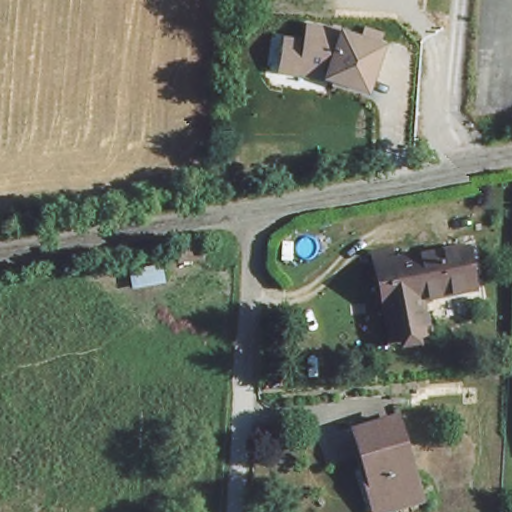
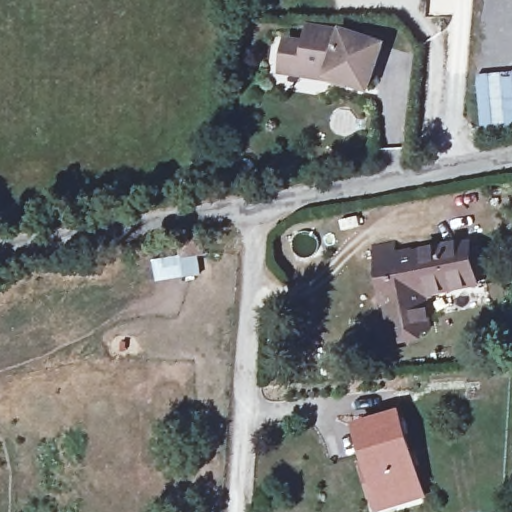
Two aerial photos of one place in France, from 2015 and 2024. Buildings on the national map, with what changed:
unchanged [(372,96),(325,81),(279,75),(286,37),(306,40),(308,26),(343,32),(344,29),(390,44),(372,96)]
new [(512,72),(512,125),(481,130),(477,74),(512,72)]
unchanged [(468,244),(474,287),(468,287),(426,293),(432,331),(393,336),(386,286),(415,282),(410,252),(461,245),(468,244)]
unchanged [(380,248),(409,245),(410,252),(415,282),(386,286),(380,248)]
unchanged [(381,512),(378,504),(356,430),(397,418),(420,491),(425,503),(394,512),(381,512)]

